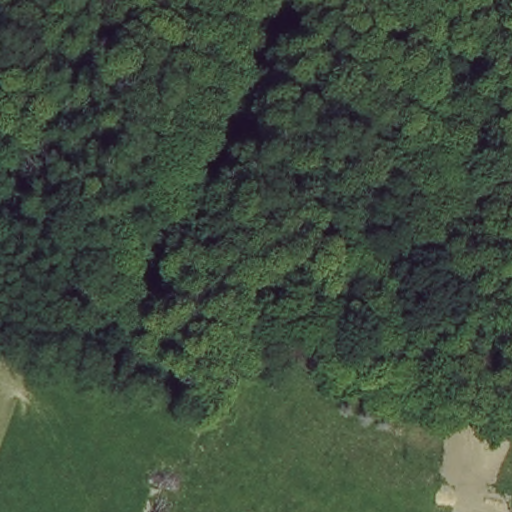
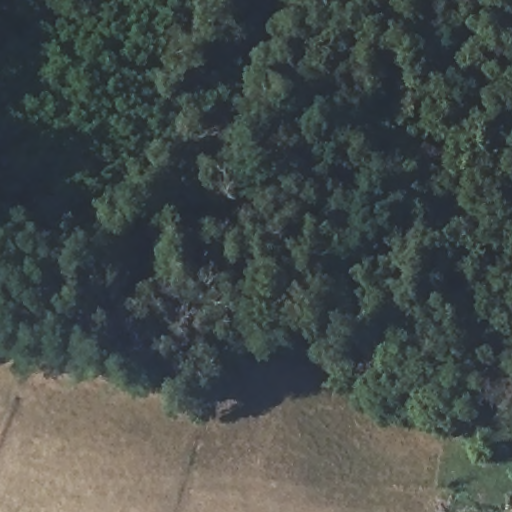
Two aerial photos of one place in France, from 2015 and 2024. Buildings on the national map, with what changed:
[]

